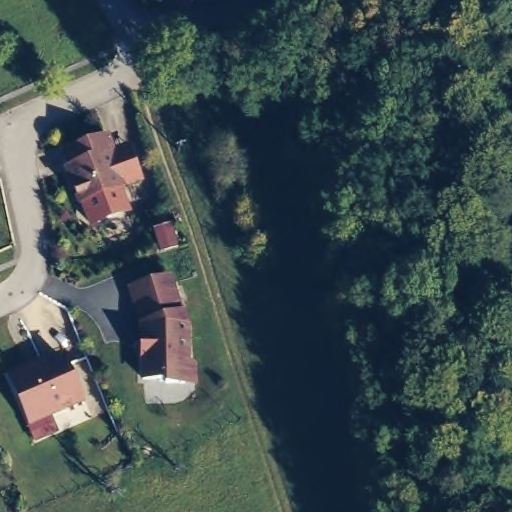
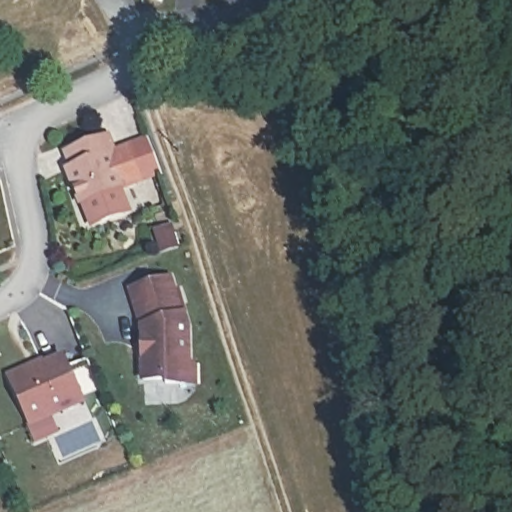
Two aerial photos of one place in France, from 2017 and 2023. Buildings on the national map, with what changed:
unchanged [(75,162),(76,162),(70,148),(113,130),(120,146),(115,148),(128,182),(85,199),(77,178),(80,177),(75,162)]
unchanged [(147,354),(153,354),(153,342),(147,342),(147,327),(136,291),(175,279),(186,315),(188,314),(192,326),(192,359),(190,364),(190,384),(170,384),(170,380),(147,381),(147,354)]
unchanged [(10,378),(42,363),(42,361),(62,352),(82,396),(29,420),(10,378)]

